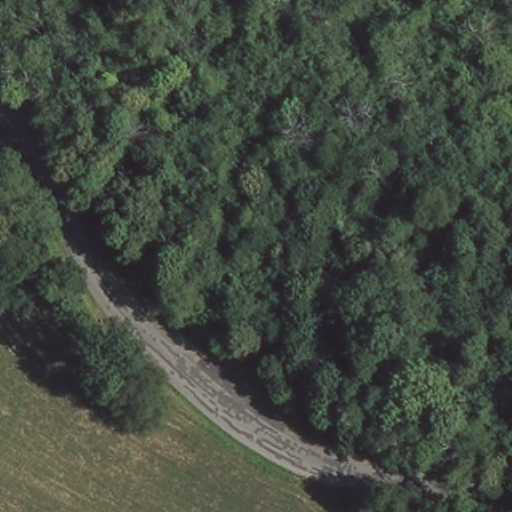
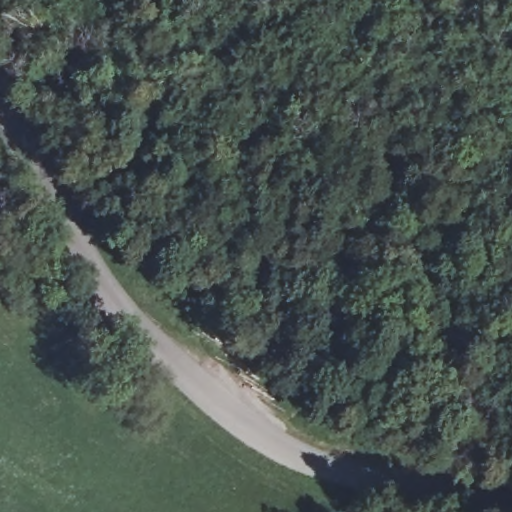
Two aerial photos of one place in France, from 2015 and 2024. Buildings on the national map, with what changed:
[]

